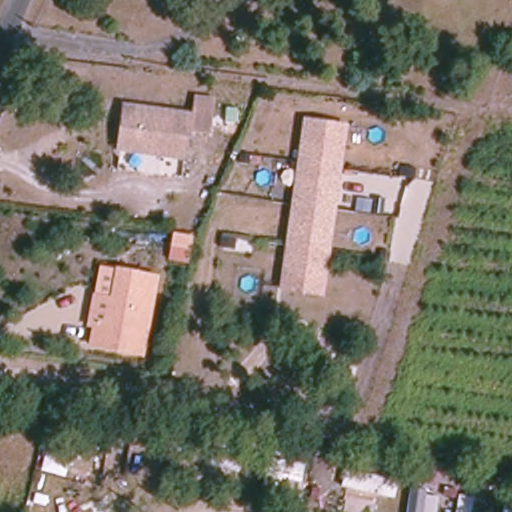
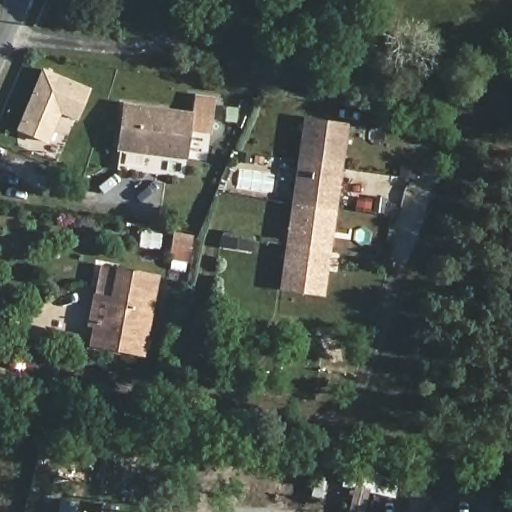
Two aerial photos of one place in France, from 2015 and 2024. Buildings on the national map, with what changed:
new [(90,89),(76,122),(61,115),(49,144),(15,130),(41,68),(90,89)]
unchanged [(207,132),(185,130),(181,159),(115,148),(121,102),(188,112),(190,95),(211,97),(207,132)]
unchanged [(285,243),(292,201),(299,159),(305,117),(335,122),(344,124),(338,166),(331,208),(324,250),(317,292),(288,287),(278,285),(285,243)]
unchanged [(144,357),(89,347),(92,327),(86,327),(100,264),(158,274),(144,357)]

